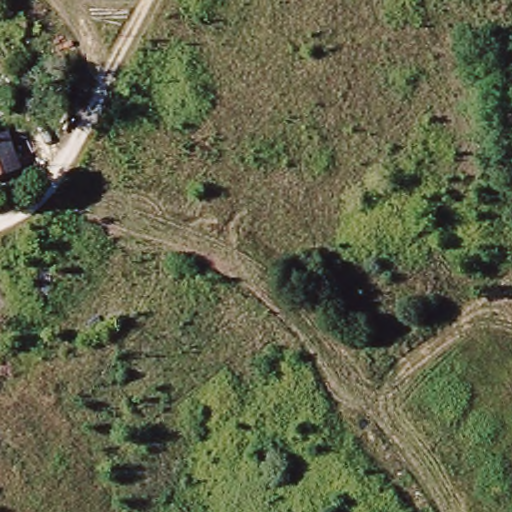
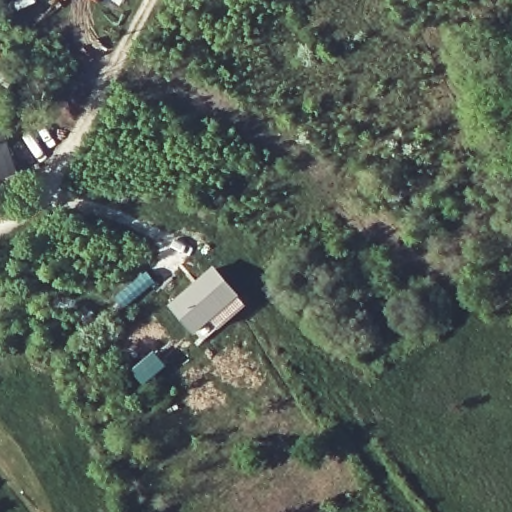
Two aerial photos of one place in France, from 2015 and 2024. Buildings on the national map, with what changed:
unchanged [(5,137),(17,171),(0,177),(0,139),(5,137)]
new [(218,270),(237,295),(196,330),(175,306),(218,270)]

